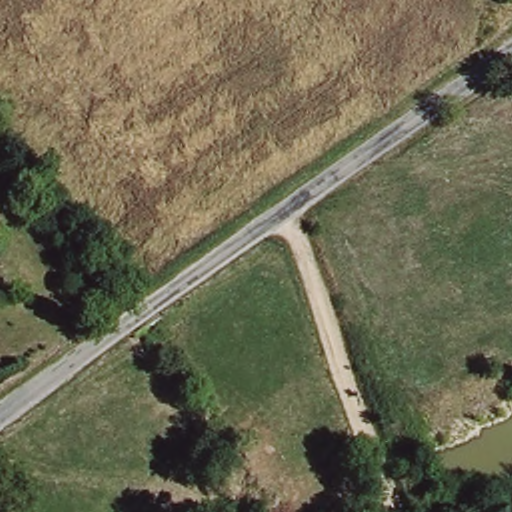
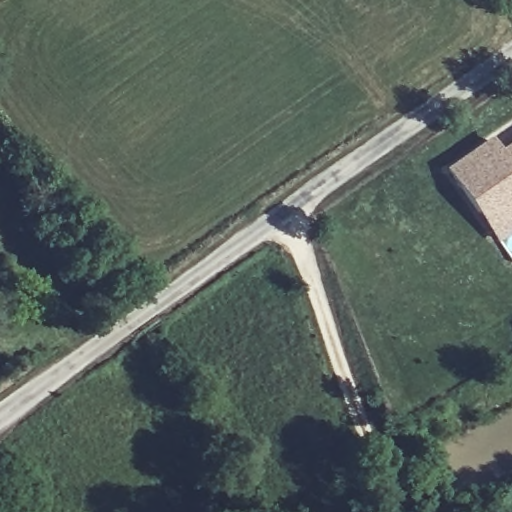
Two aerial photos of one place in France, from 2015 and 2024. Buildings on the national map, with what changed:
new [(494,140),(503,152),(512,146),(512,199),(506,203),(502,197),(482,212),(452,169),(494,140)]
new [(502,197),(506,203),(512,199),(512,230),(500,238),(482,212),(502,197)]

